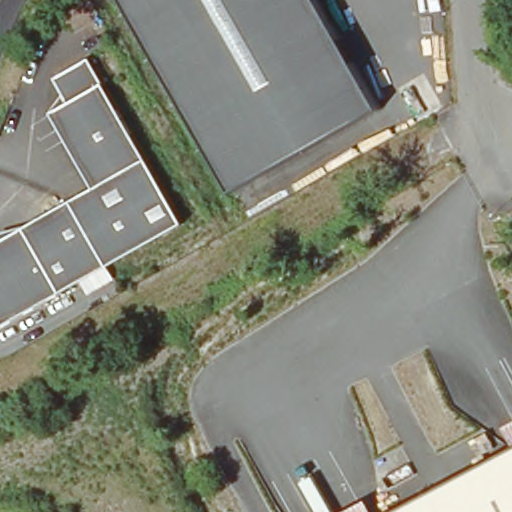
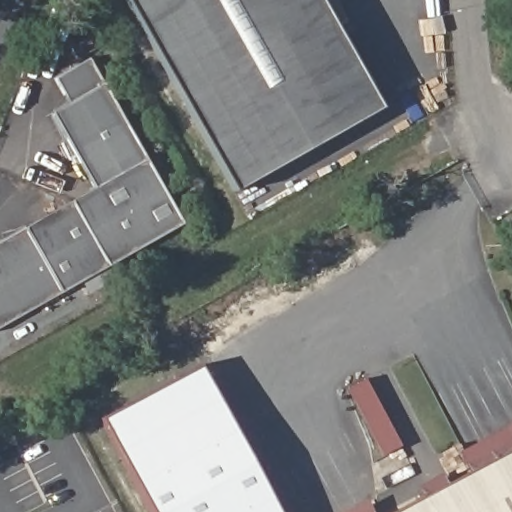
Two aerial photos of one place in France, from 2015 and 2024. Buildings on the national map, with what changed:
unchanged [(232,191),(124,0),(317,0),(378,110),(232,191)]
unchanged [(51,113),(62,96),(52,77),(88,58),(104,84),(183,225),(0,324),(0,239),(93,187),(51,113)]
new [(103,419),(200,367),(276,512),(153,512),(103,419)]
new [(383,458),(347,390),(366,380),(403,447),(383,458)]
new [(467,472),(457,454),(512,424),(512,448),(467,472)]
unchanged [(512,448),(512,512),(390,512),(512,448)]
new [(367,501),(372,512),(346,512),(367,501)]

